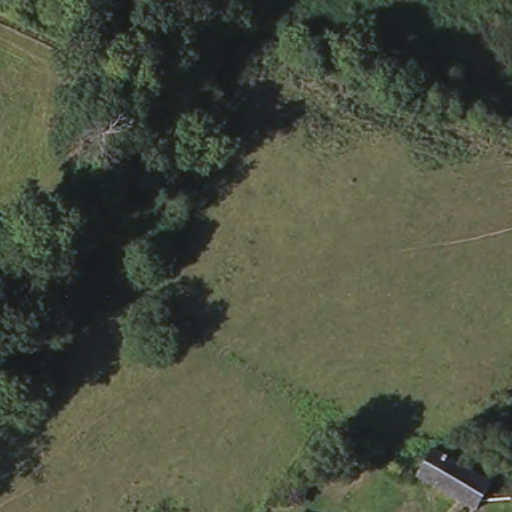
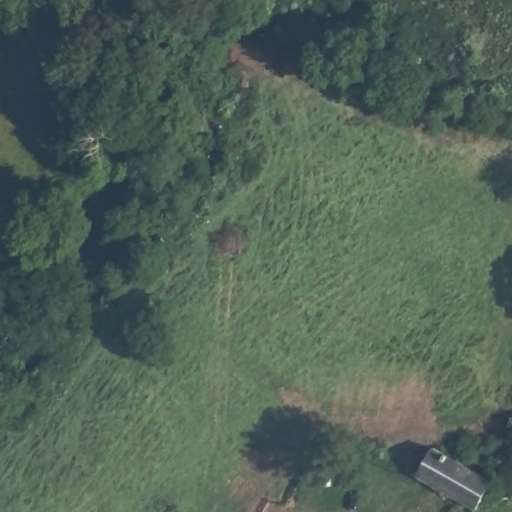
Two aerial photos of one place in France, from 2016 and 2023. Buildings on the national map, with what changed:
unchanged [(495,480),(478,512),(475,512),(469,509),(457,504),(413,477),(430,447),(472,469),(484,474),(495,480)]

